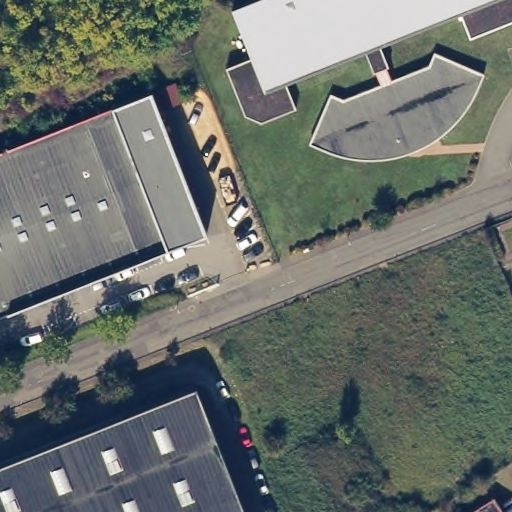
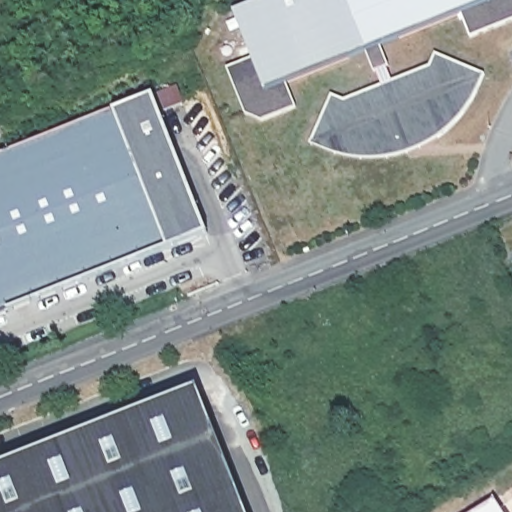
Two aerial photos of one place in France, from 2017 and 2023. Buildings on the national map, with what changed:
unchanged [(233,5),(244,0),(512,0),(512,17),(471,33),(462,10),(382,41),(367,47),(288,79),(297,102),(262,116),(246,110),(227,63),(252,53),(233,5)]
unchanged [(332,89),(345,94),(382,79),(377,66),(375,67),(367,47),(382,41),(390,61),(387,62),(392,75),(430,60),(436,47),(485,69),(477,89),(470,100),(462,111),(452,121),(442,130),(432,138),(420,144),(409,148),(397,151),(386,154),(374,155),(362,154),(350,152),(337,150),(326,145),(310,139),(332,89)]
unchanged [(134,95),(152,87),(208,228),(189,235),(134,95)]
unchanged [(89,290),(59,277),(46,307),(24,298),(0,308),(0,147),(134,95),(189,235),(99,269),(89,290)]
unchanged [(0,458),(197,379),(249,512),(0,512),(0,458)]
unchanged [(494,493),(506,512),(463,512),(494,493)]

